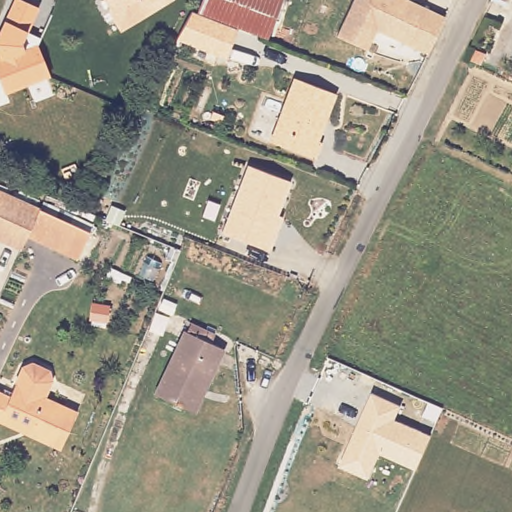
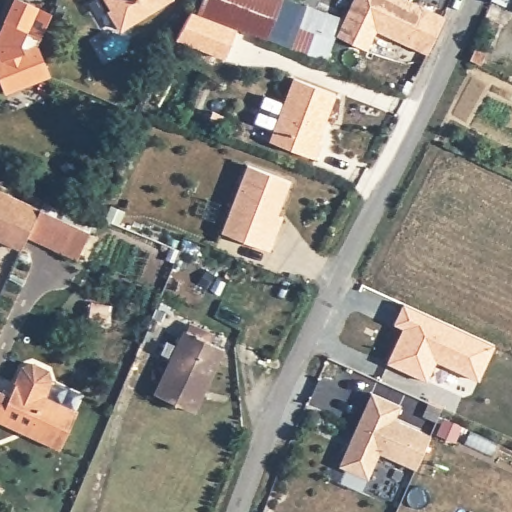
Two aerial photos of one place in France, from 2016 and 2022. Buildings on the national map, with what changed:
unchanged [(41,7),(30,32),(40,38),(37,43),(50,78),(4,93),(0,82),(0,26),(12,0),(24,0),(41,7)]
unchanged [(174,1),(119,33),(106,13),(110,11),(104,0),(173,0),(174,1)]
unchanged [(265,36),(236,25),(196,10),(200,0),(281,0),(265,36)]
unchanged [(443,17),(428,48),(413,40),(410,45),(376,31),(369,48),(338,34),(354,0),(409,0),(443,17)]
unchanged [(505,5),(493,0),(507,0),(505,5)]
unchanged [(236,25),(225,60),(175,40),(196,10),(236,25)]
unchanged [(470,46),(483,51),(478,64),(467,58),(470,46)]
unchanged [(266,139),(290,76),(330,91),(312,138),(316,140),(310,155),(266,139)]
unchanged [(247,164),(290,180),(276,216),(283,218),(270,251),(263,249),(221,233),(247,164)]
unchanged [(20,247),(0,239),(0,191),(36,206),(20,247)]
unchanged [(77,254),(76,258),(24,237),(36,206),(50,211),(87,225),(77,254)]
new [(396,338),(400,340),(405,330),(392,324),(401,304),(492,345),(476,381),(433,361),(425,381),(385,363),(396,338)]
unchanged [(181,328),(221,347),(192,408),(152,390),(181,328)]
unchanged [(0,420),(0,391),(10,395),(15,382),(22,366),(30,362),(47,369),(51,377),(45,394),(78,408),(62,446),(0,420)]
unchanged [(371,392),(401,406),(395,419),(430,434),(415,470),(378,455),(369,479),(338,465),(371,392)]

